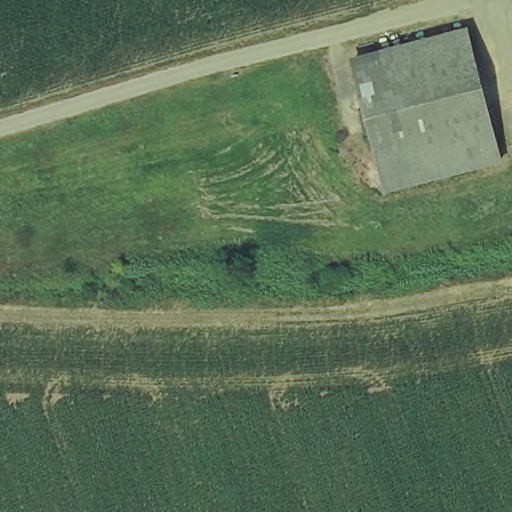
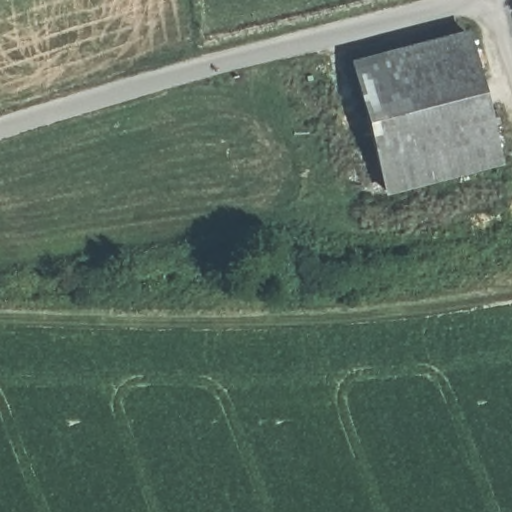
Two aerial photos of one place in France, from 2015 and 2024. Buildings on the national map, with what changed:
unchanged [(465,32),(498,156),(385,187),(350,63),(465,32)]

